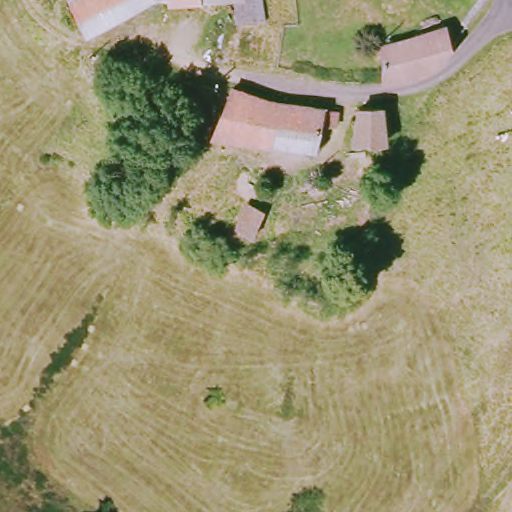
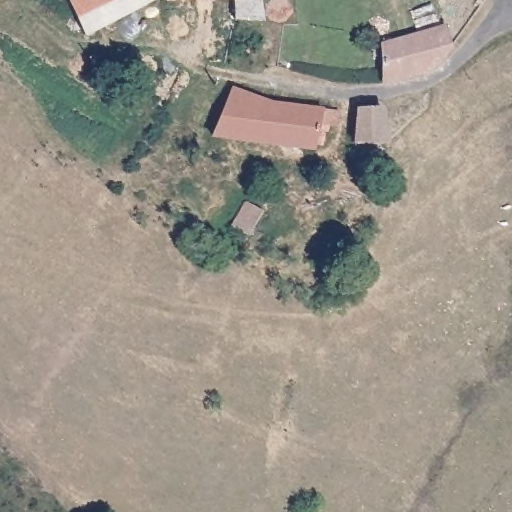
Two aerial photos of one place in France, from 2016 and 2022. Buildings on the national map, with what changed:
unchanged [(83,37),(64,1),(66,0),(150,0),(83,37)]
unchanged [(198,1),(166,2),(166,0),(197,0),(198,1)]
unchanged [(198,1),(197,0),(218,0),(198,1)]
unchanged [(233,0),(260,0),(264,20),(252,21),(234,22),(233,17),(233,0)]
unchanged [(437,64),(419,73),(381,83),(380,48),(444,27),(450,48),(437,64)]
unchanged [(313,141),(311,145),(208,132),(228,84),(266,99),(334,108),(334,121),(327,122),(326,127),(321,129),(318,141),(313,141)]
unchanged [(377,109),(379,144),(348,144),(356,108),(377,109)]
unchanged [(236,229),(246,204),(261,210),(253,235),(236,229)]

